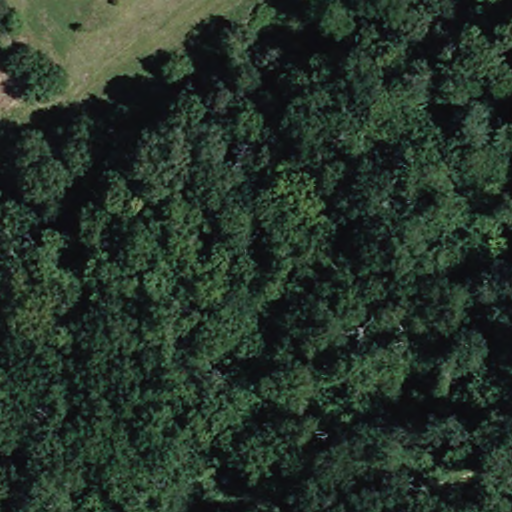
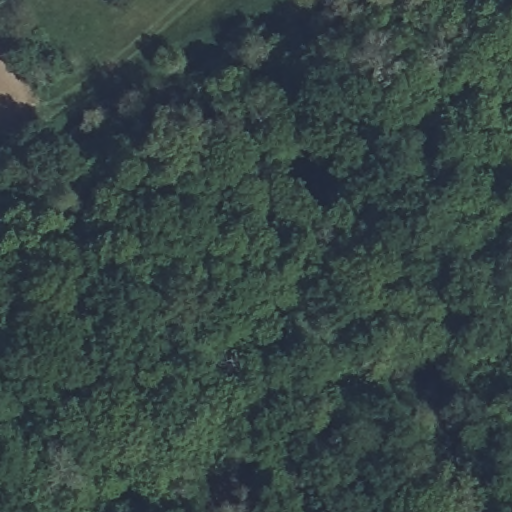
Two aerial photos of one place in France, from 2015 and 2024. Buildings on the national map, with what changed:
[]

